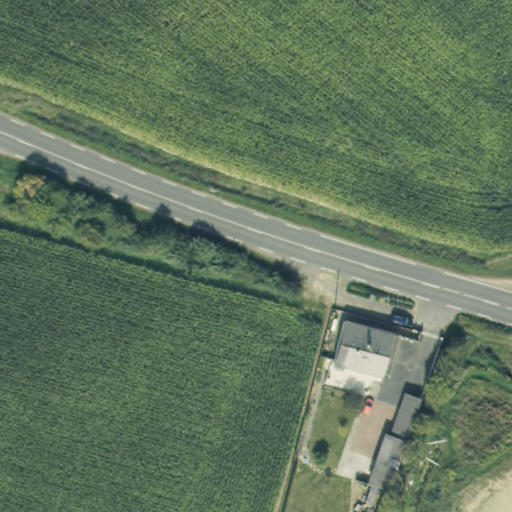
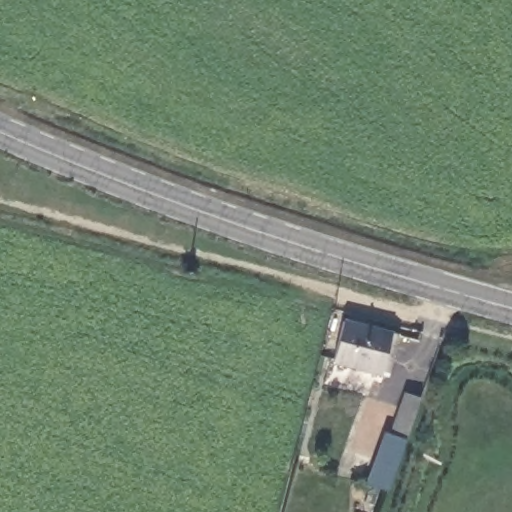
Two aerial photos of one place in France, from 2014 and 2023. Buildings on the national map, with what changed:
unchanged [(337,320),(392,333),(382,372),(328,359),(337,320)]
unchanged [(384,436),(388,438),(402,395),(420,400),(387,491),(368,486),(384,436)]

